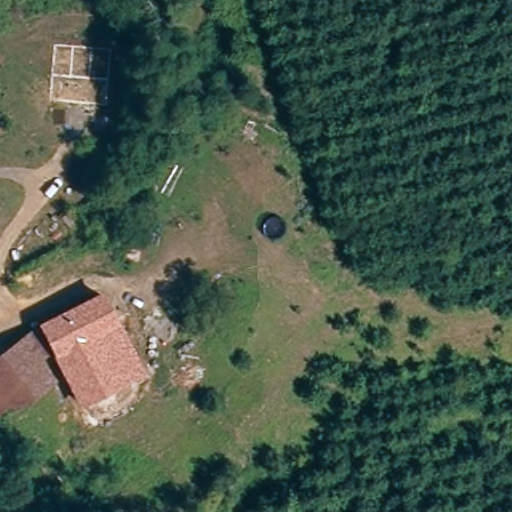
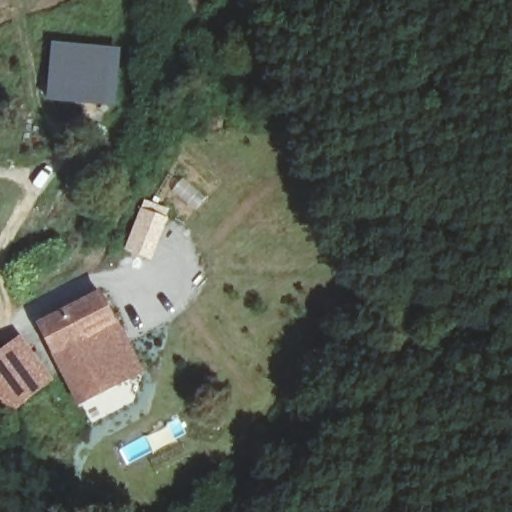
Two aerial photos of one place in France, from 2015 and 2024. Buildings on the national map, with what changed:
new [(122,48),(117,106),(47,100),(52,41),(122,48)]
new [(153,261),(125,249),(141,206),(170,217),(153,261)]
demolished [(160,216),(148,247),(135,241),(145,209),(160,216)]
demolished [(16,288),(0,295),(0,253),(16,288)]
unchanged [(117,322),(98,332),(125,382),(115,387),(83,402),(66,371),(44,326),(102,296),(117,322)]
unchanged [(33,330),(49,350),(38,361),(53,381),(16,411),(10,404),(0,413),(0,355),(33,330)]
unchanged [(160,493),(151,504),(133,487),(140,477),(160,493)]

